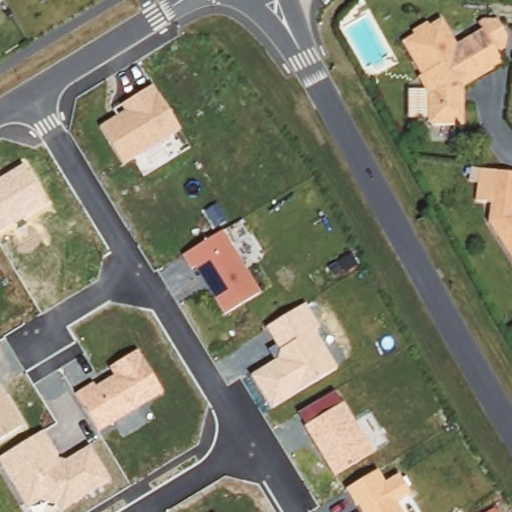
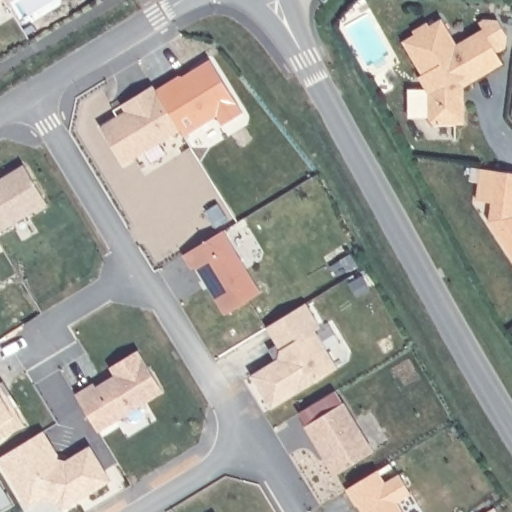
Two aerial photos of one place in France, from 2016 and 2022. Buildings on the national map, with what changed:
unchanged [(0,3),(0,0),(4,0),(4,1),(0,3)]
unchanged [(403,41),(400,36),(413,26),(417,32),(429,24),(445,47),(470,30),(465,23),(470,20),(485,19),(495,33),(495,45),(486,51),(494,62),(458,87),(456,127),(422,126),(423,92),(393,49),(403,41)]
new [(222,124),(217,116),(186,134),(183,129),(159,87),(180,75),(182,77),(210,60),(242,112),(222,124)]
unchanged [(117,116),(113,109),(155,83),(183,129),(124,166),(100,126),(117,116)]
unchanged [(22,166),(45,204),(0,231),(0,178),(22,166)]
unchanged [(512,170),(512,250),(490,217),(495,168),(496,168),(512,170)]
unchanged [(222,230),(260,292),(225,314),(197,267),(192,268),(185,252),(222,230)]
unchanged [(250,376),(277,358),(278,350),(266,328),(306,304),(320,328),(313,332),(336,368),(271,407),(250,376)]
unchanged [(96,385),(113,375),(109,367),(139,349),(165,393),(96,433),(73,392),(93,381),(96,385)]
unchanged [(25,426),(0,440),(0,385),(25,426)]
unchanged [(303,427),(306,426),(299,413),(335,392),(341,405),(343,402),(373,452),(333,476),(303,427)]
unchanged [(59,457),(67,459),(89,447),(110,482),(61,511),(56,503),(41,501),(28,507),(0,464),(0,457),(45,430),(59,457)]
unchanged [(346,490),(378,471),(384,483),(398,476),(410,495),(396,502),(402,512),(360,512),(346,490)]

